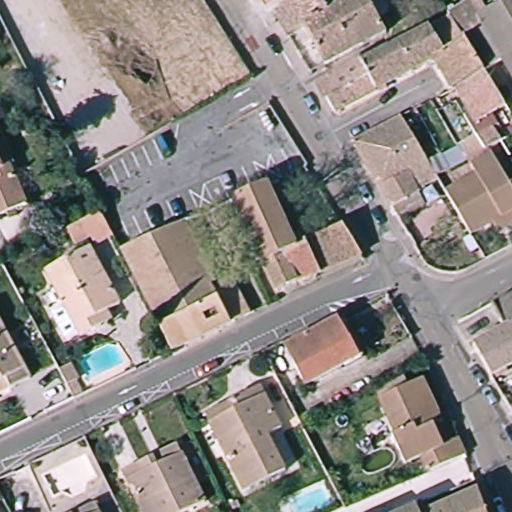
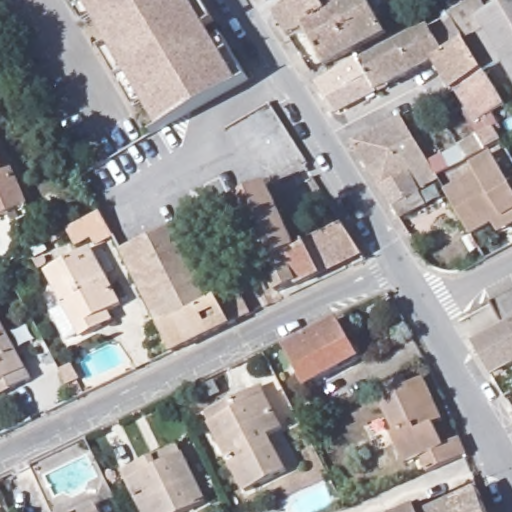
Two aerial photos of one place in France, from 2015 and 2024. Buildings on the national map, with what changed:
new [(83,0),(190,0),(240,84),(157,129),(83,0)]
unchanged [(290,46),(285,36),(271,13),(295,0),(362,0),(380,34),(352,49),(320,65),(305,38),(290,46)]
unchanged [(460,40),(480,30),(473,17),(504,0),(512,0),(512,85),(498,60),(479,71),(460,40)]
unchanged [(450,88),(447,90),(429,60),(439,54),(425,28),(445,17),(460,40),(479,71),(450,88)]
unchanged [(357,64),(425,28),(439,54),(429,60),(372,91),(357,64)]
unchanged [(312,81),(355,59),(357,64),(372,91),(329,110),(312,81)]
unchanged [(480,150),(459,115),(465,111),(450,88),(479,71),(500,105),(486,114),(492,124),(488,127),(497,140),(480,150)]
unchanged [(353,141),(400,116),(435,176),(435,177),(418,188),(419,190),(426,205),(400,220),(392,205),(353,141)]
unchanged [(0,214),(0,154),(22,205),(0,214)]
unchanged [(487,222),(468,235),(440,193),(470,176),(465,166),(485,155),(508,195),(512,192),(512,220),(493,231),(487,222)]
unchanged [(267,187),(295,249),(295,251),(263,266),(232,202),(267,187)]
unchanged [(102,214),(111,231),(96,239),(93,233),(82,239),(75,228),(102,214)]
unchanged [(122,252),(183,225),(213,287),(232,279),(252,315),(232,324),(173,352),(154,316),(122,252)]
unchanged [(295,251),(295,249),(343,225),(362,255),(297,286),(295,285),(277,294),(263,266),(295,251)]
unchanged [(121,305),(108,312),(113,321),(82,338),(47,271),(90,249),(121,305)]
unchanged [(512,294),(512,366),(492,376),(475,345),(505,329),(492,305),(512,294)]
unchanged [(361,357),(307,386),(286,347),(340,318),(361,357)]
unchanged [(0,396),(0,322),(31,379),(0,396)]
unchanged [(422,458),(407,465),(393,436),(396,435),(380,399),(415,383),(423,379),(442,421),(434,425),(443,445),(459,438),(465,456),(427,472),(422,458)]
unchanged [(282,428),(267,436),(285,472),(247,492),(206,415),(262,388),(282,428)]
unchanged [(186,512),(143,512),(124,472),(179,445),(205,503),(186,512)]
unchanged [(428,500),(433,510),(478,490),(486,512),(420,512),(417,505),(428,500)]
unchanged [(79,512),(96,504),(100,512),(79,512)]
unchanged [(420,512),(402,512),(417,505),(420,512)]

